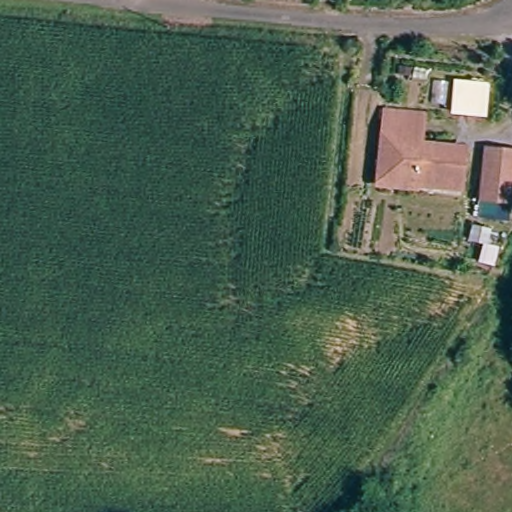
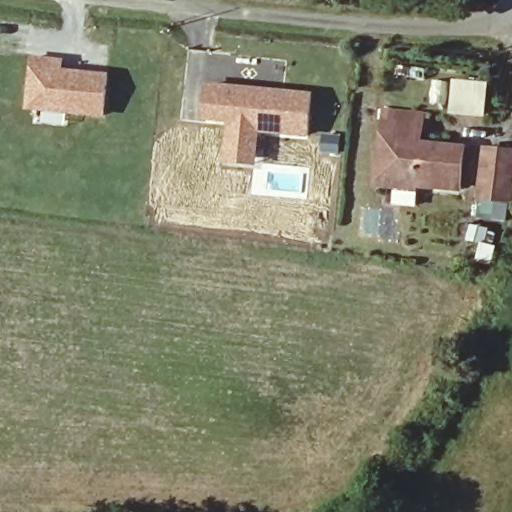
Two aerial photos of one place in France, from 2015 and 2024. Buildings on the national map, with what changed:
new [(66,60),(65,71),(111,75),(108,117),(29,111),(33,58),(66,60)]
new [(488,119),(452,117),(456,81),(491,83),(488,119)]
new [(225,164),(229,124),(207,122),(209,85),(316,93),(312,139),(263,134),(260,167),(225,164)]
unchanged [(424,140),(465,142),(462,192),(420,189),(421,180),(380,177),(384,111),(425,114),(424,140)]
demolished [(492,145),(512,147),(512,201),(486,200),(492,145)]
new [(480,202),(485,147),(512,149),(512,221),(479,219),(480,202)]

